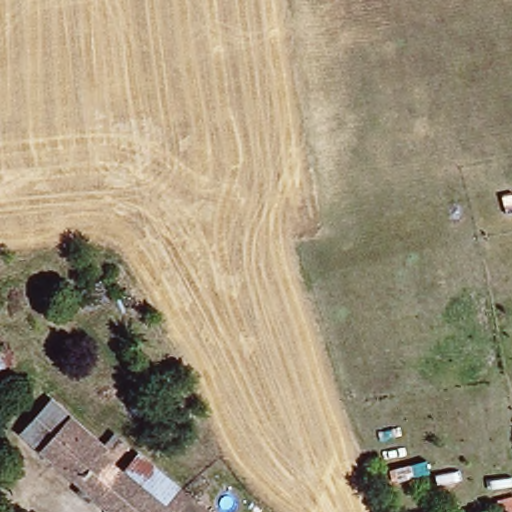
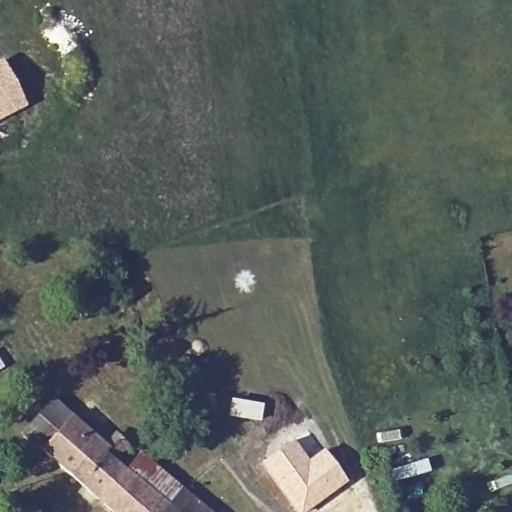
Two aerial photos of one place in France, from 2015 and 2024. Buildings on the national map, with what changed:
new [(26,106),(0,119),(0,59),(26,106)]
unchanged [(4,339),(14,360),(0,368),(0,341),(4,339)]
unchanged [(99,439),(110,427),(128,444),(116,456),(124,463),(161,499),(174,512),(105,512),(31,440),(66,406),(99,439)]
new [(306,460),(321,449),(347,482),(305,512),(296,512),(258,464),(291,440),(306,460)]
unchanged [(142,444),(180,479),(161,499),(124,463),(142,444)]
unchanged [(180,479),(214,512),(174,512),(161,499),(180,479)]
unchanged [(512,493),(512,512),(507,512),(502,496),(512,493)]

